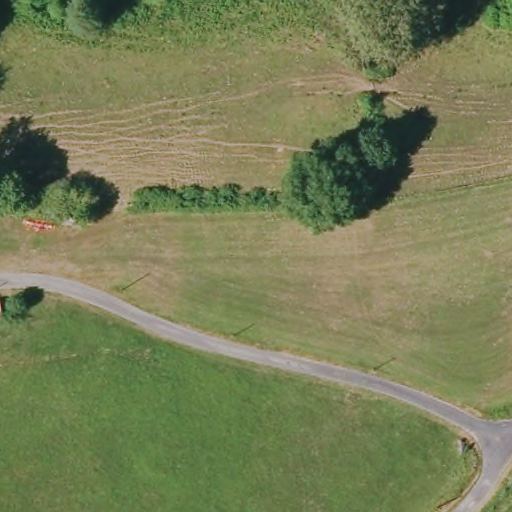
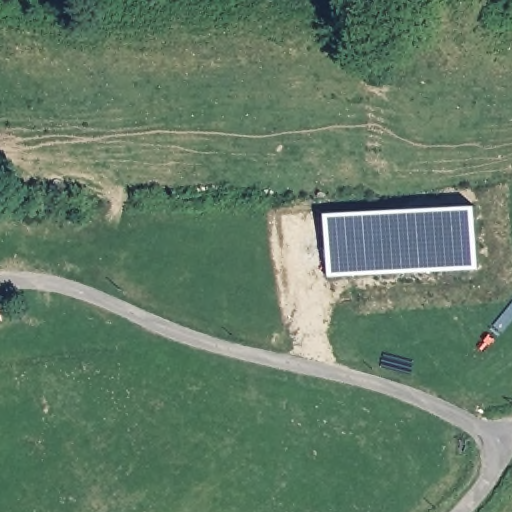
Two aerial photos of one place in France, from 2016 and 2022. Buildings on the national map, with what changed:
new [(473,273),(327,279),(317,213),(468,208),(473,273)]
unchanged [(0,325),(0,301),(3,300),(5,324),(0,325)]

